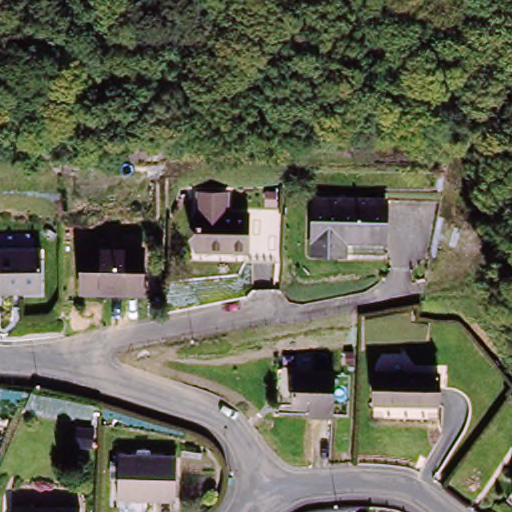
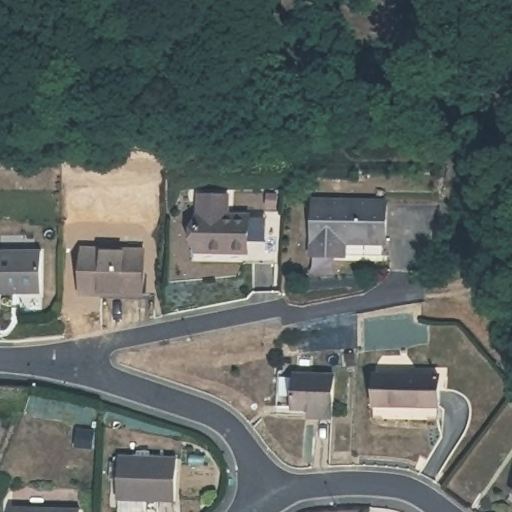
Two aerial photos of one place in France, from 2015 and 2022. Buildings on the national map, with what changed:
unchanged [(329,250),(306,249),(309,194),(383,199),(381,240),(380,254),(329,250)]
unchanged [(248,219),(246,258),(192,254),(195,216),(248,219)]
unchanged [(37,295),(0,294),(0,251),(38,252),(37,295)]
unchanged [(141,253),(141,297),(85,296),(86,253),(141,253)]
unchanged [(441,372),(439,415),(373,412),(374,369),(441,372)]
unchanged [(334,377),(332,416),(308,415),(309,408),(291,407),(292,376),(334,377)]
unchanged [(175,459),(174,503),(114,502),(115,458),(175,459)]
unchanged [(8,512),(8,511),(76,512),(8,512)]

